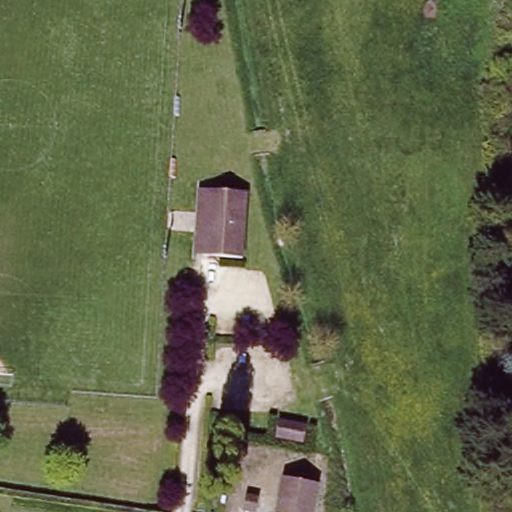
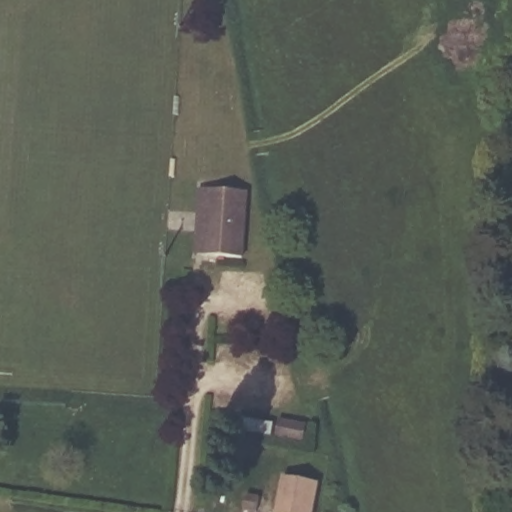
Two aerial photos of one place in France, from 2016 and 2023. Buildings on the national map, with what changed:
unchanged [(241,257),(202,254),(195,254),(197,185),(205,185),(244,187),(241,257)]
unchanged [(271,421),(297,427),(294,444),(268,438),(271,421)]
unchanged [(322,485),(316,512),(280,512),(286,477),(322,485)]
unchanged [(248,492),(261,495),(258,510),(245,507),(248,492)]

